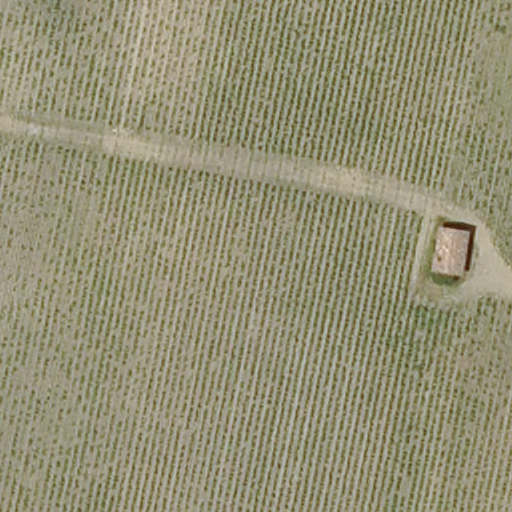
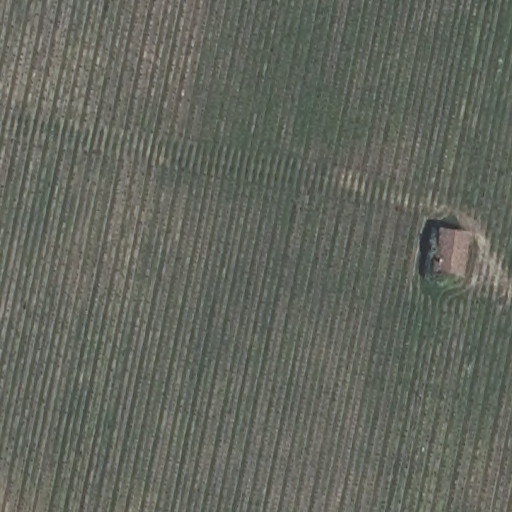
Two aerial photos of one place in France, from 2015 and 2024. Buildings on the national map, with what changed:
unchanged [(462,237),(452,275),(431,272),(438,234),(462,237)]

